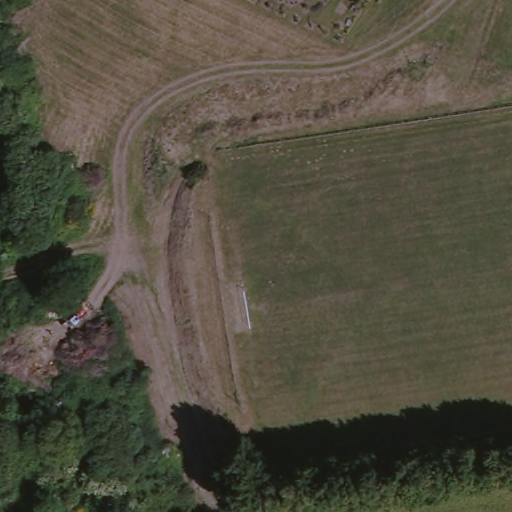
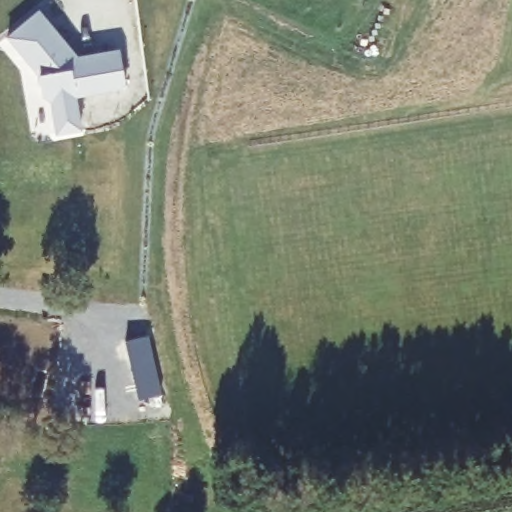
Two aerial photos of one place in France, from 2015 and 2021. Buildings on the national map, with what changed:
new [(126,86),(76,97),(81,129),(56,134),(51,102),(42,95),(39,74),(6,34),(39,8),(79,55),(120,48),(126,86)]

